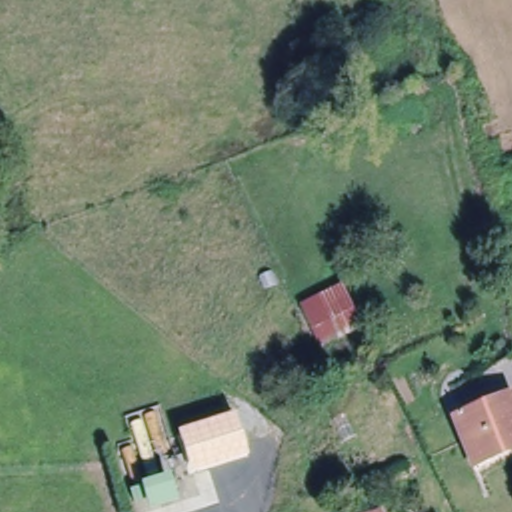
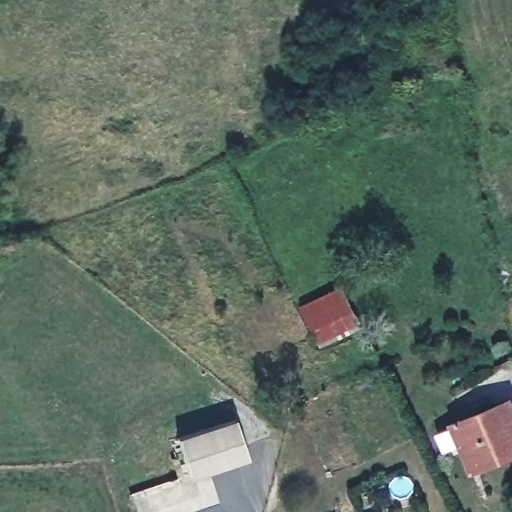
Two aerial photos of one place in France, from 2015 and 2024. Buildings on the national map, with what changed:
unchanged [(351,328),(329,337),(319,306),(315,297),(339,289),(342,297),(351,328)]
unchanged [(512,396),(512,398),(512,448),(474,464),(457,419),(512,396)]
unchanged [(234,416),(248,459),(191,475),(178,434),(234,416)]
unchanged [(131,491),(134,489),(140,486),(165,478),(169,477),(178,505),(156,512),(149,512),(146,504),(135,504),(131,491)]

